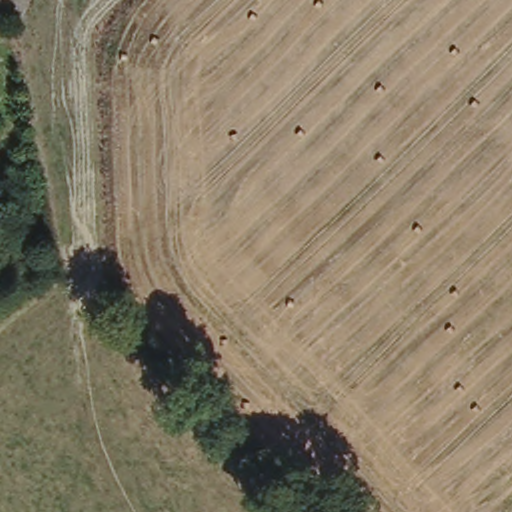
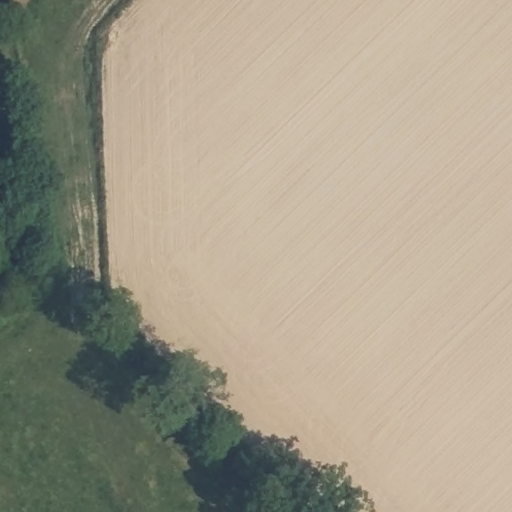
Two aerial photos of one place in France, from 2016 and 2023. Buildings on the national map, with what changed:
[]

